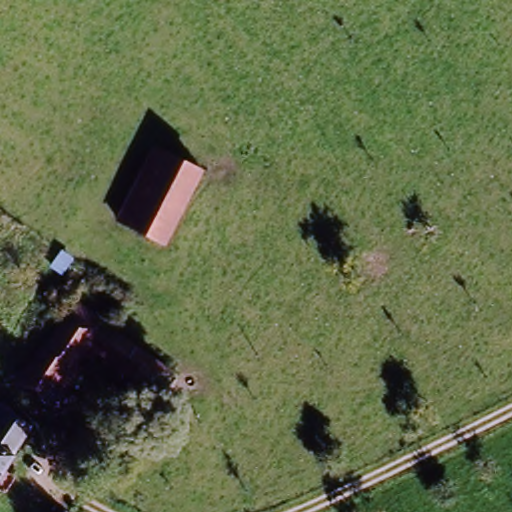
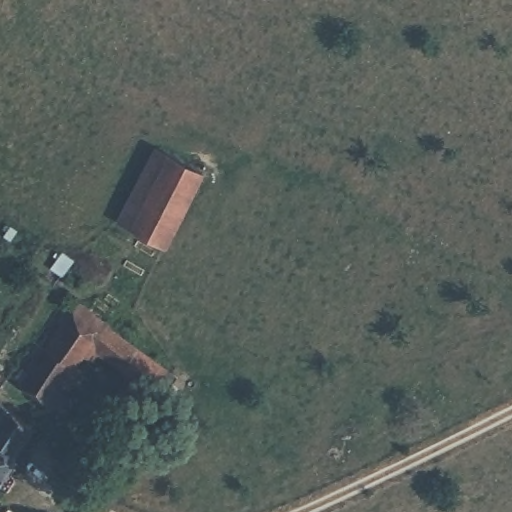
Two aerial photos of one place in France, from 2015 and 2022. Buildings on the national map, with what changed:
unchanged [(166,248),(120,225),(158,154),(203,178),(166,248)]
unchanged [(53,266),(63,252),(73,259),(64,273),(53,266)]
unchanged [(58,412),(38,400),(43,393),(26,382),(22,388),(13,383),(73,301),(98,317),(99,322),(179,380),(164,401),(92,349),(87,356),(76,349),(68,362),(75,368),(61,390),(69,395),(58,412)]
unchanged [(22,421),(4,450),(8,451),(0,464),(0,407),(22,421)]

